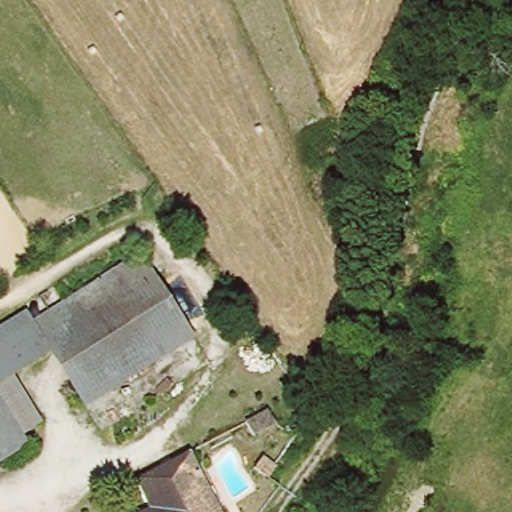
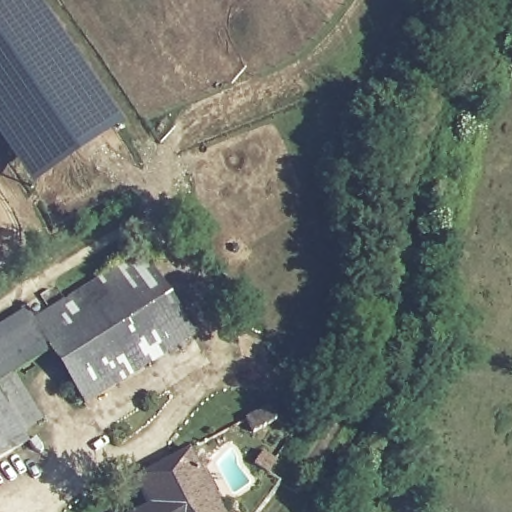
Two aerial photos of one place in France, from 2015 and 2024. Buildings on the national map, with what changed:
new [(53,33),(119,126),(88,150),(32,187),(0,141),(0,0),(33,0),(53,33)]
unchanged [(89,405),(53,350),(38,325),(142,261),(192,341),(89,405)]
unchanged [(35,320),(38,325),(53,350),(0,384),(0,341),(35,320)]
unchanged [(27,441),(0,459),(0,397),(27,441)]
unchanged [(258,436),(250,424),(268,413),(276,425),(258,436)]
unchanged [(284,467),(265,486),(254,474),(272,456),(284,467)]
unchanged [(147,512),(153,509),(140,481),(193,458),(218,512),(147,512)]

